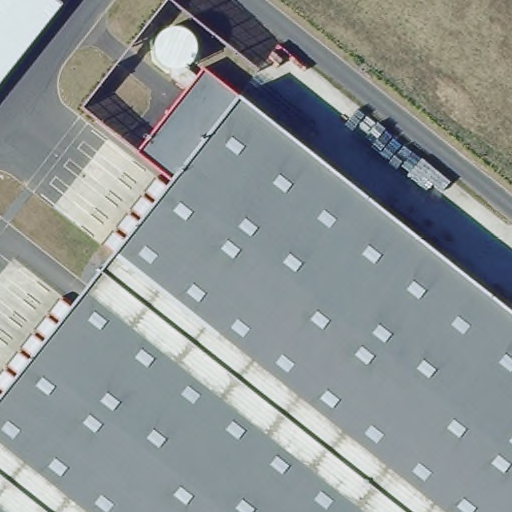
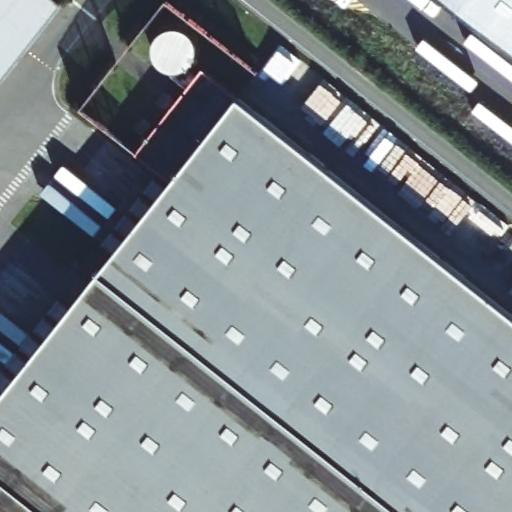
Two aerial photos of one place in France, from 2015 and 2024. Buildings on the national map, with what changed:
unchanged [(0,83),(0,0),(55,0),(62,6),(0,83)]
new [(443,0),(512,0),(512,55),(443,0)]
unchanged [(137,153),(203,70),(238,99),(512,316),(512,512),(0,512),(0,398),(172,182),(137,153)]

